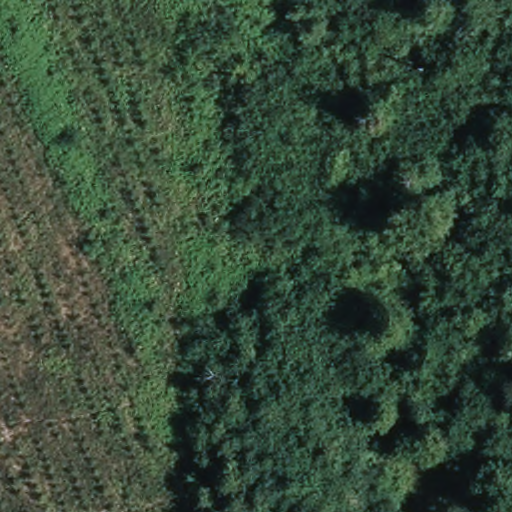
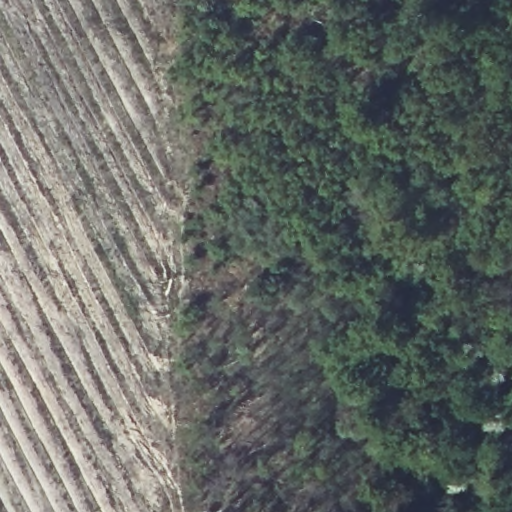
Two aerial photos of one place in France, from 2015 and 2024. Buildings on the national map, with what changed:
[]

